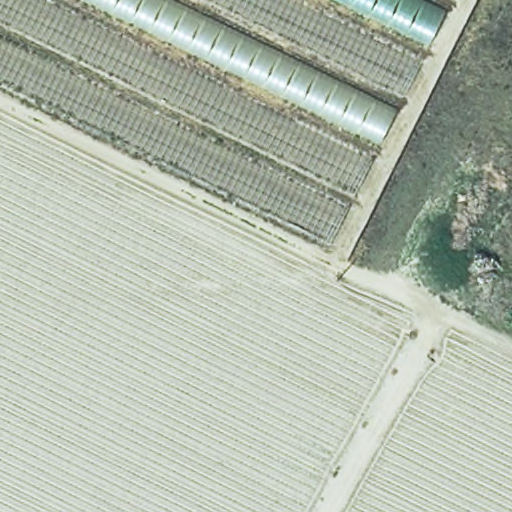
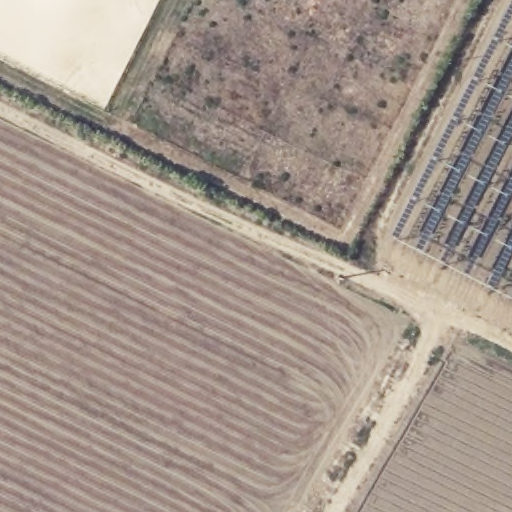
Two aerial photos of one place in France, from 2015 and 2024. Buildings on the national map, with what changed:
demolished [(330,244),(0,85),(0,0),(452,0),(330,244)]

